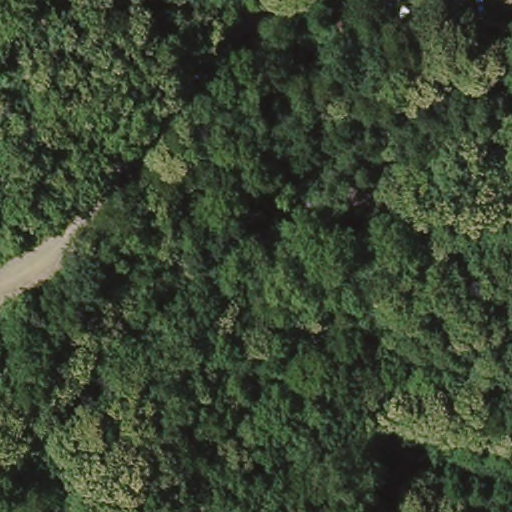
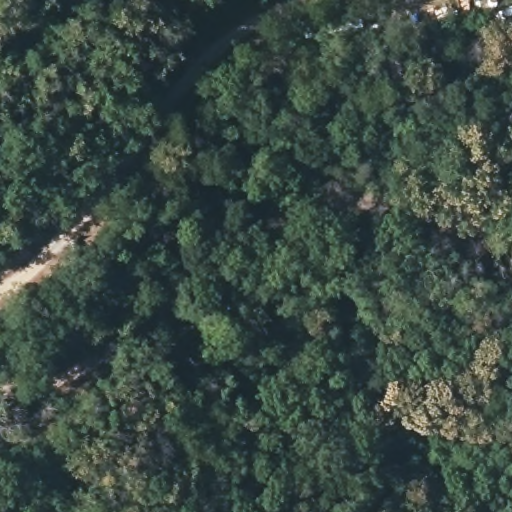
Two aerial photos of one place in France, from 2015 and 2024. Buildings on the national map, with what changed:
unchanged [(466,19),(463,6),(442,8),(440,0),(477,0),(481,16),(466,19)]

